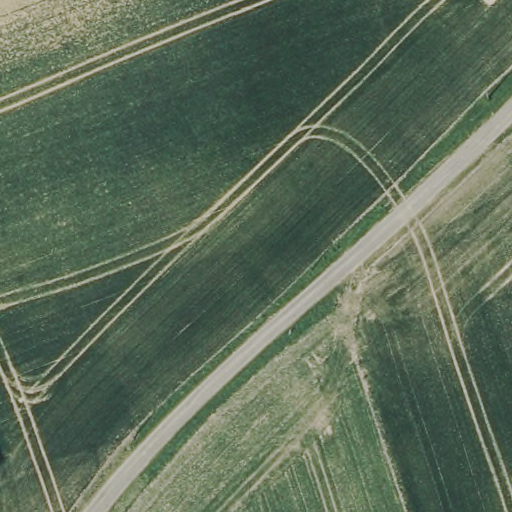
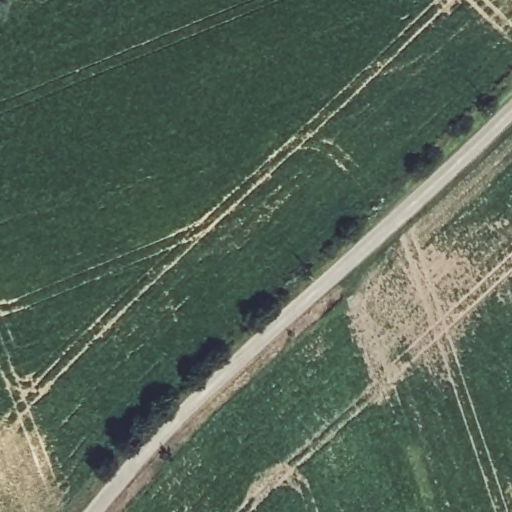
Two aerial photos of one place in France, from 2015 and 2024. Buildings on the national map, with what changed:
[]

